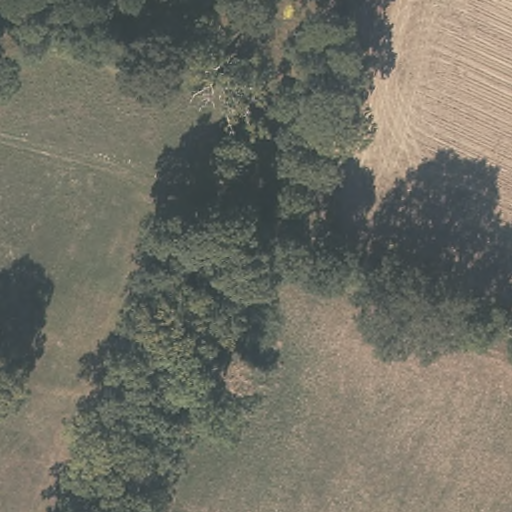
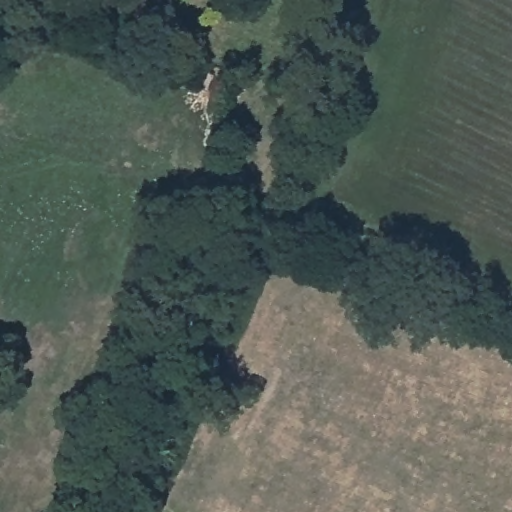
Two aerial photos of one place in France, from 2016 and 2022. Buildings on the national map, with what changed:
[]

